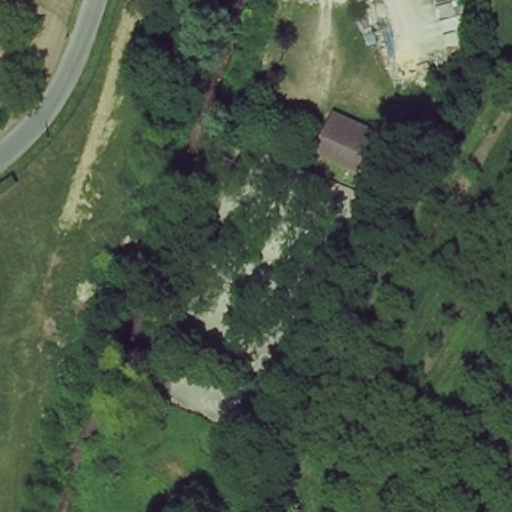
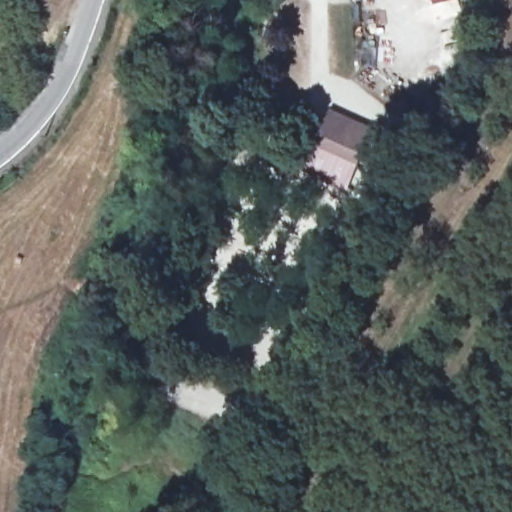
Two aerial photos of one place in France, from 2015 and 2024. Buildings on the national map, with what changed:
unchanged [(315,149),(319,140),(330,112),(370,128),(357,156),(353,165),(315,149)]

